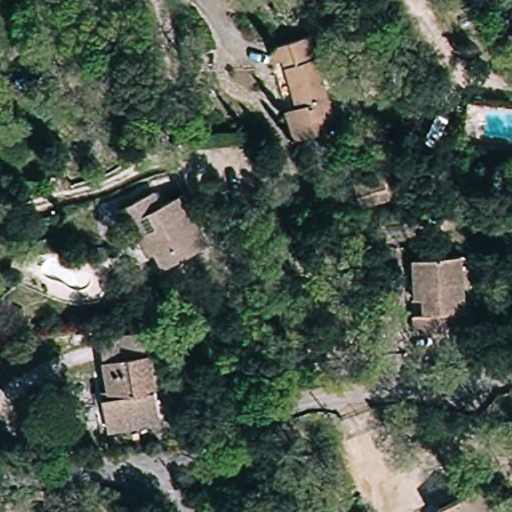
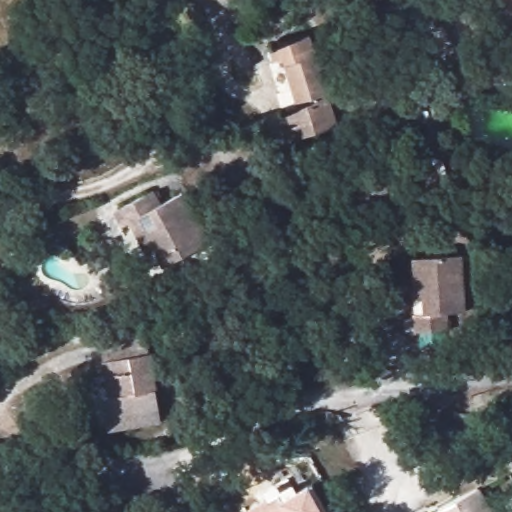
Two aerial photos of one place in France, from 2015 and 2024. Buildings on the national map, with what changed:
demolished [(508,0),(512,0),(512,13),(508,0)]
unchanged [(271,47),(310,38),(333,128),(291,139),(282,107),(294,104),(284,65),(276,67),(271,47)]
unchanged [(384,194),(419,184),(427,210),(391,221),(384,194)]
unchanged [(283,194),(313,188),(317,215),(287,217),(283,194)]
unchanged [(136,233),(131,224),(124,228),(114,212),(151,189),(161,204),(181,191),(212,241),(170,269),(160,255),(152,260),(136,233)]
unchanged [(461,327),(429,332),(426,313),(431,312),(422,260),(468,253),(477,306),(458,309),(461,327)]
unchanged [(100,400),(104,399),(96,343),(142,337),(155,420),(104,427),(100,400)]
new [(297,491),(308,485),(323,511),(323,512),(241,512),(293,485),(297,491)]
unchanged [(488,512),(434,512),(466,485),(488,512)]

